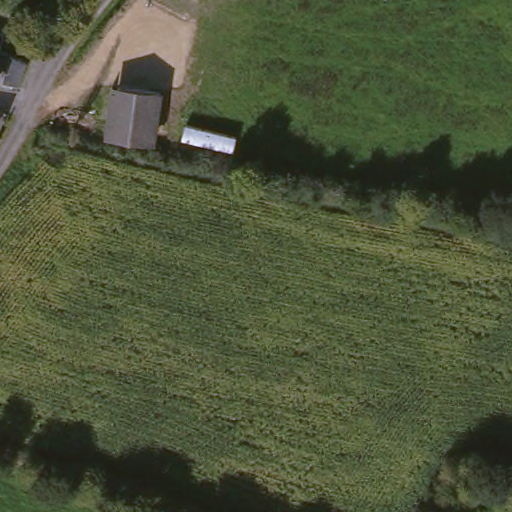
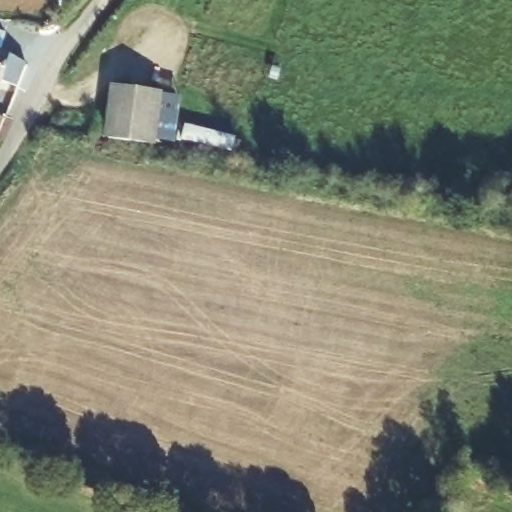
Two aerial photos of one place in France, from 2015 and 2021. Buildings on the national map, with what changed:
unchanged [(9,32),(31,36),(9,83),(0,79),(0,46),(4,48),(9,32)]
unchanged [(157,146),(97,138),(105,88),(163,94),(157,146)]
unchanged [(0,137),(0,111),(9,116),(0,137)]

